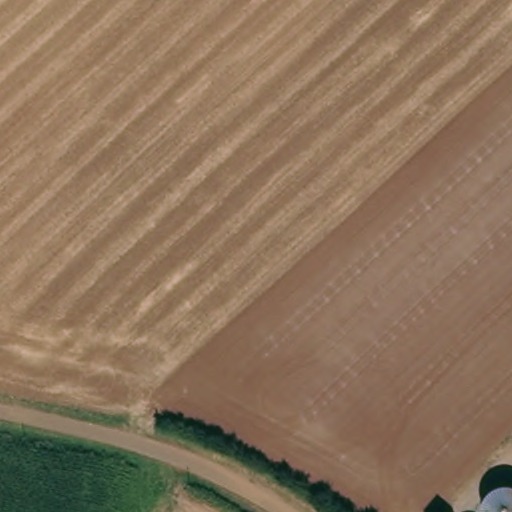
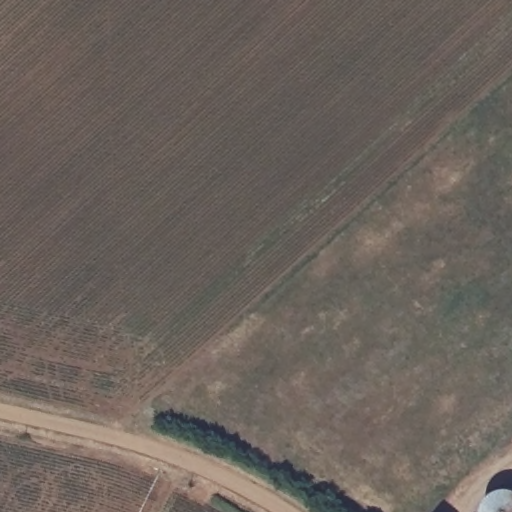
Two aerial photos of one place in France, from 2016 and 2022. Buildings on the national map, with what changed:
unchanged [(508,492),(510,492),(511,492),(512,493),(512,512),(483,512),(483,511),(483,510),(484,508),(485,506),(485,505),(486,503),(487,502),(488,501),(490,500),(491,498),(492,497),(493,496),(495,495),(496,495),(498,494),(500,493),(501,493),(503,492),(505,492),(506,492),(508,492)]

